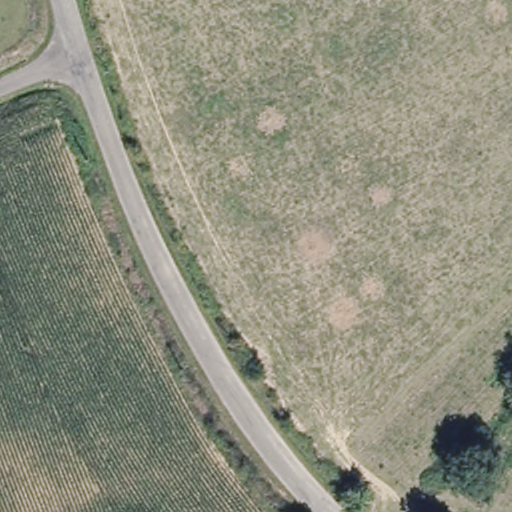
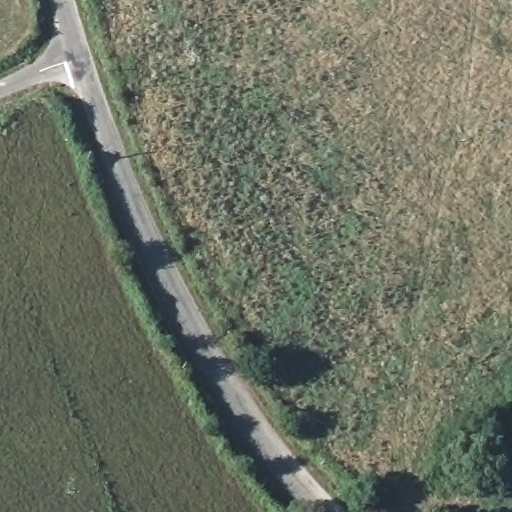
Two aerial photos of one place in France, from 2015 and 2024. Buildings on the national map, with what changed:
[]

